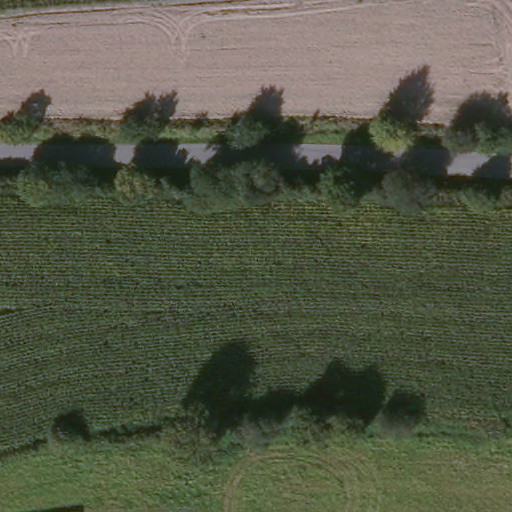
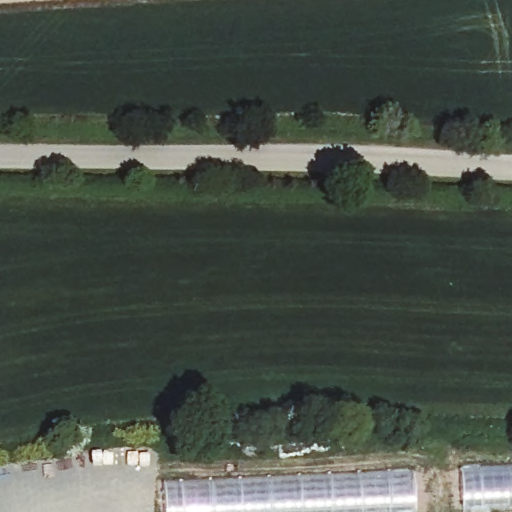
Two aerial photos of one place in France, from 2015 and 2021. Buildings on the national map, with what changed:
new [(512,512),(463,512),(461,466),(512,464),(512,512)]
new [(416,512),(165,512),(164,481),(415,470),(416,512)]

